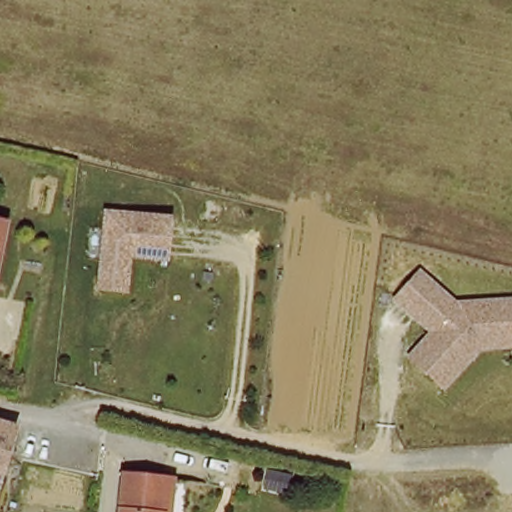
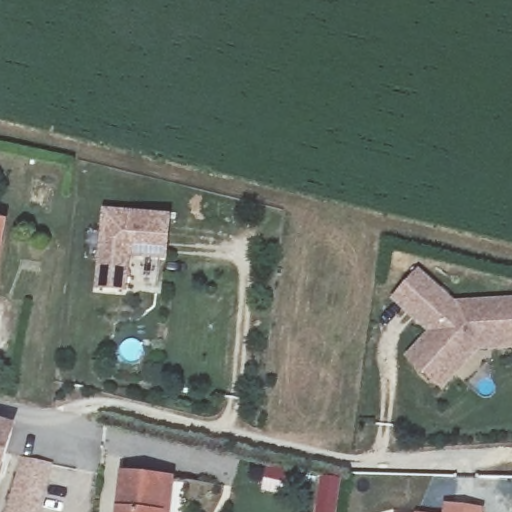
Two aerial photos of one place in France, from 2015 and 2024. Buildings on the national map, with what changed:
unchanged [(110,217),(175,225),(171,267),(133,262),(129,297),(101,294),(110,217)]
unchanged [(2,230),(0,238),(0,230),(2,230)]
unchanged [(443,392),(405,359),(430,334),(393,301),(421,270),(457,301),(512,299),(512,349),(485,351),(443,392)]
unchanged [(17,427),(14,439),(0,435),(0,421),(17,427)]
unchanged [(14,439),(5,471),(0,470),(0,435),(14,439)]
new [(55,466),(41,512),(8,512),(24,457),(55,466)]
unchanged [(0,482),(0,470),(5,471),(0,482)]
unchanged [(117,512),(119,476),(161,478),(170,480),(168,512),(117,512)]
new [(485,510),(485,512),(446,512),(447,505),(485,510)]

